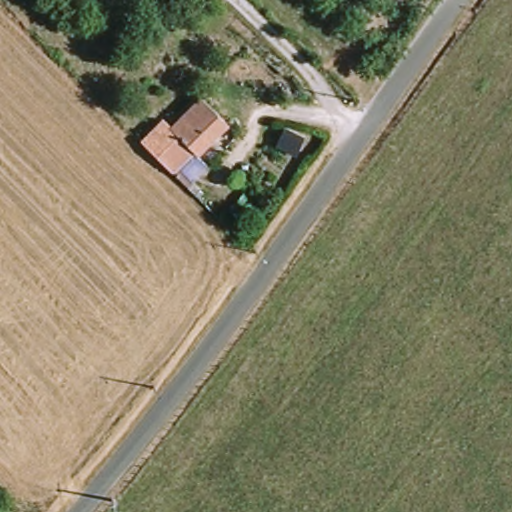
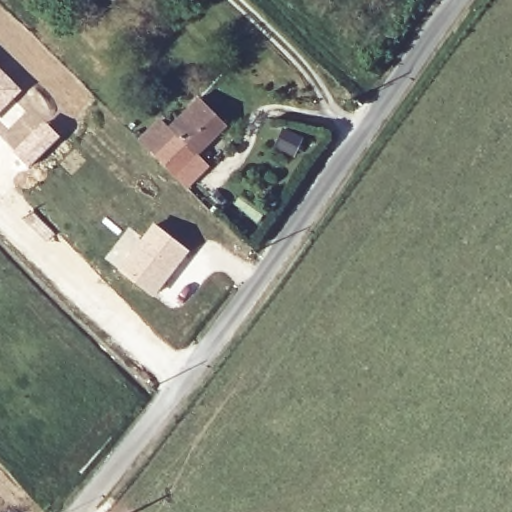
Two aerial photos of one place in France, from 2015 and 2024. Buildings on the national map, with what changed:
new [(0,114),(0,67),(24,91),(0,114)]
new [(25,92),(36,83),(53,99),(59,113),(48,123),(61,136),(30,167),(0,137),(0,114),(24,91),(25,92)]
unchanged [(211,110),(228,128),(200,155),(196,150),(175,171),(145,142),(164,122),(181,139),(211,110)]
new [(128,227),(141,237),(154,221),(191,250),(154,297),(104,257),(128,227)]

